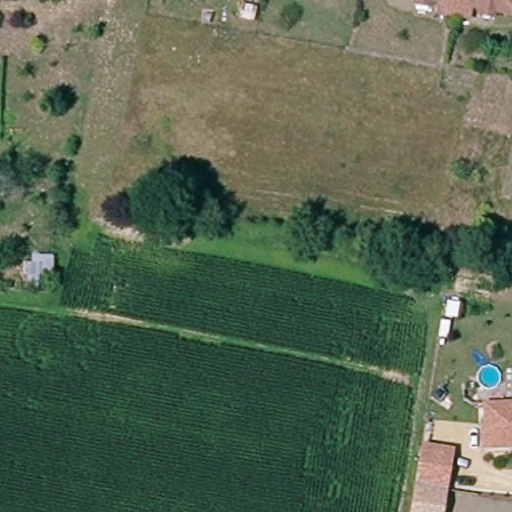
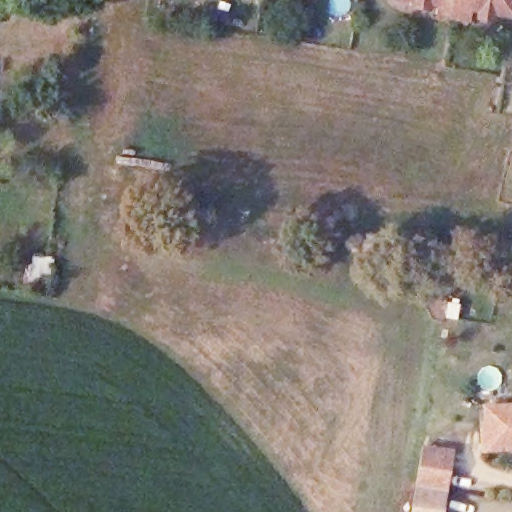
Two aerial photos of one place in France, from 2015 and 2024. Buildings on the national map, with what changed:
unchanged [(477,16),(477,9),(468,8),(467,18),(437,13),(438,2),(429,1),(428,8),(412,6),(412,0),(512,0),(512,14),(493,12),(492,17),(477,16)]
unchanged [(482,445),(480,419),(479,404),(512,402),(512,443),(482,445)]
unchanged [(419,489),(422,469),(425,449),(454,453),(452,473),(449,493),(422,489),(420,489),(419,489)]
unchanged [(446,512),(414,512),(419,489),(449,493),(446,512)]

